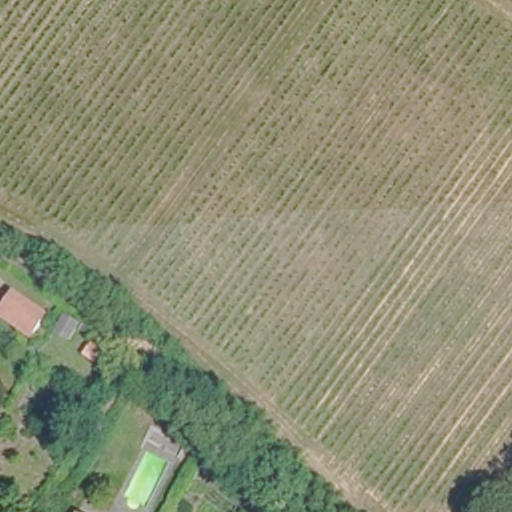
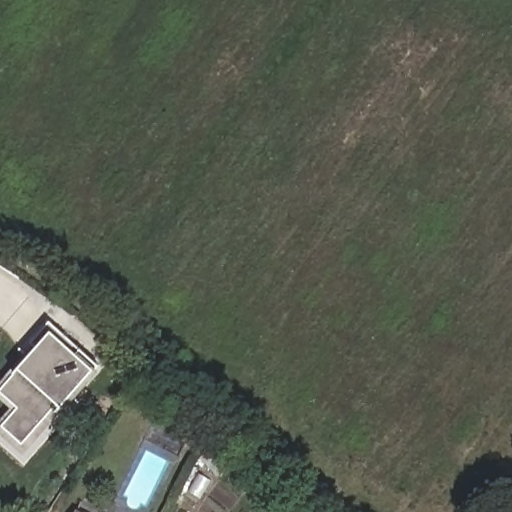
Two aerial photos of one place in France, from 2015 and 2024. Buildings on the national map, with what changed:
demolished [(0,319),(0,305),(11,288),(50,311),(31,338),(0,319)]
new [(71,405),(70,403),(25,455),(0,434),(0,421),(11,408),(0,398),(0,382),(34,344),(31,342),(50,321),(100,365),(97,367),(101,371),(71,405)]
unchanged [(76,512),(76,511),(78,512),(76,512)]

